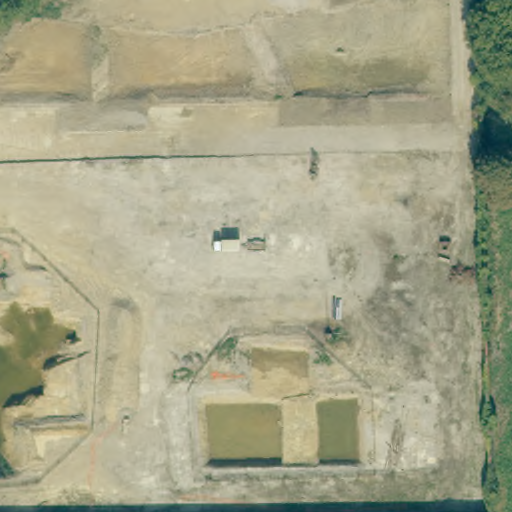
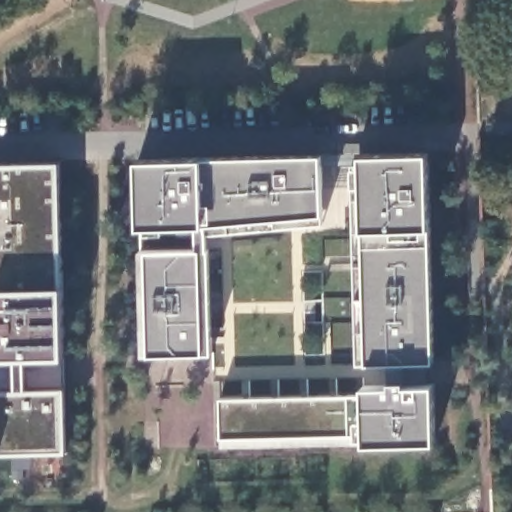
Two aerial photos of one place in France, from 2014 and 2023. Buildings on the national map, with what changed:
new [(431,152),(432,225),(436,361),(419,362),(420,382),(436,382),(437,442),(368,443),(224,446),(224,437),(224,396),(365,394),(366,385),(391,383),(391,361),(368,362),(359,362),(353,164),(365,162),(364,153),(431,152)]
new [(206,156),(324,154),(324,212),(324,223),(209,233),(209,250),(213,249),(215,351),(204,352),(151,354),(144,354),(141,249),(149,248),(199,247),(197,224),(142,226),(141,157),(206,156)]
new [(59,160),(63,286),(65,355),(66,386),(68,449),(3,451),(0,451),(0,163),(59,160)]

